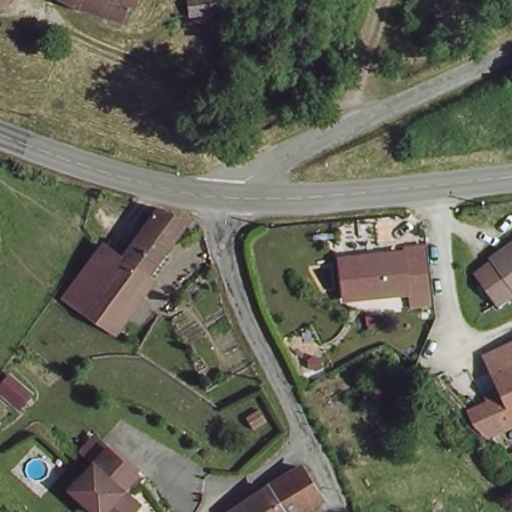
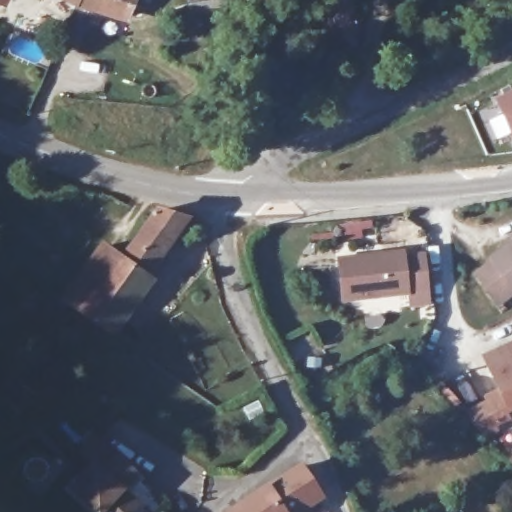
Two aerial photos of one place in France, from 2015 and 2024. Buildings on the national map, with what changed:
unchanged [(196,9),(196,0),(227,0),(227,8),(196,9)]
new [(496,103),(512,95),(512,135),(496,103)]
unchanged [(189,214),(119,309),(130,318),(119,334),(65,294),(101,243),(123,257),(158,205),(189,214)]
unchanged [(495,303),(474,275),(491,264),(488,258),(512,241),(512,295),(511,292),(495,303)]
unchanged [(341,300),(336,261),(400,253),(400,249),(419,247),(420,257),(424,291),(341,300)]
unchanged [(481,352),(487,349),(512,337),(512,413),(506,416),(510,425),(487,438),(466,416),(481,408),(477,401),(498,390),(489,369),(481,352)]
unchanged [(130,471),(116,487),(132,501),(122,512),(97,512),(69,486),(103,446),(130,471)]
unchanged [(317,498),(292,512),(230,512),(270,482),(299,465),(317,498)]

